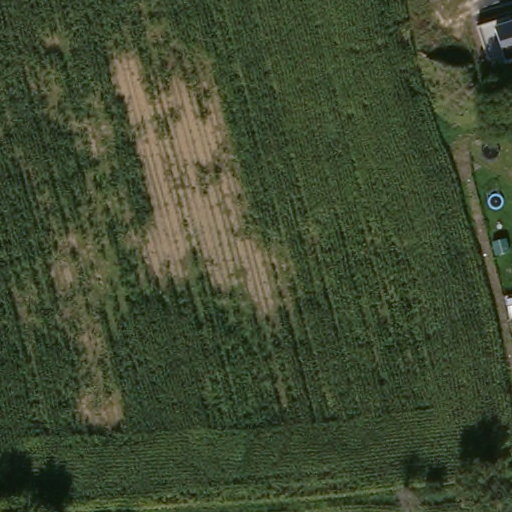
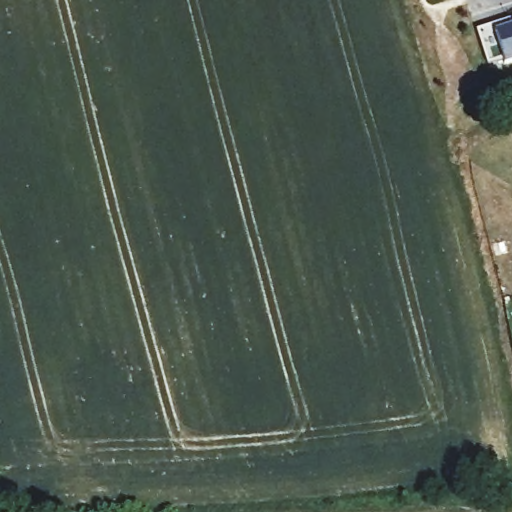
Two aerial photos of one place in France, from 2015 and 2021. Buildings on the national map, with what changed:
unchanged [(510,26),(512,25),(512,63),(503,66),(501,59),(487,65),(476,31),(508,20),(510,26)]

